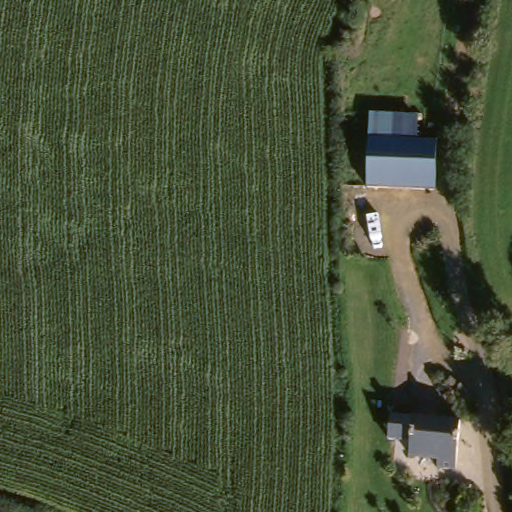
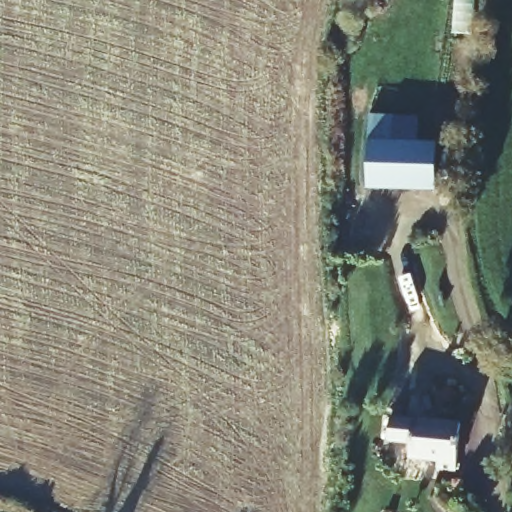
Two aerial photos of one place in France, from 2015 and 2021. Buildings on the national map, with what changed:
unchanged [(414,114),(414,139),(429,143),(431,188),(367,186),(368,114),(414,114)]
unchanged [(460,419),(461,468),(444,468),(444,458),(412,459),(411,419),(460,419)]

